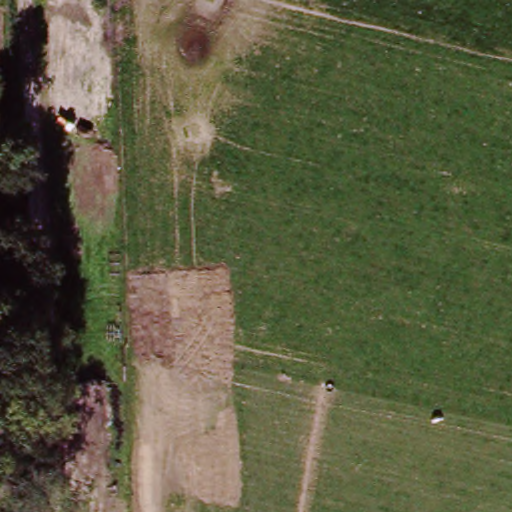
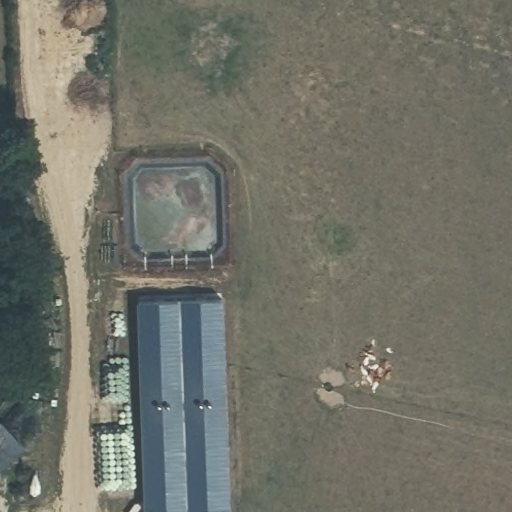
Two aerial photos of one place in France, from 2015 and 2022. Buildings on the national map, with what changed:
new [(220,298),(230,512),(217,512),(217,503),(204,503),(204,512),(171,512),(171,505),(146,506),(136,302),(220,298)]

